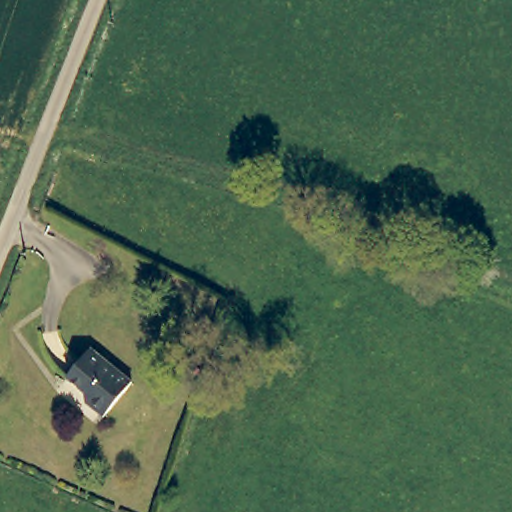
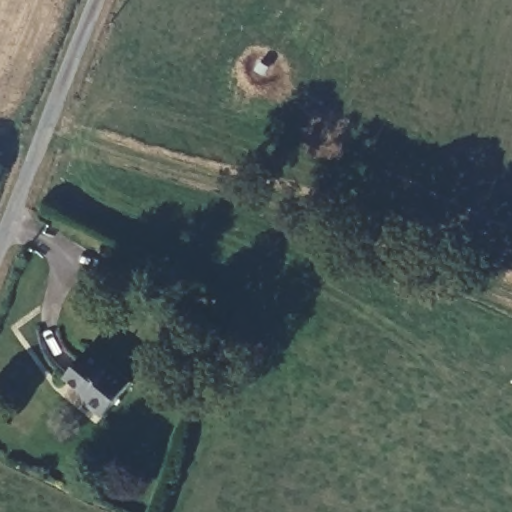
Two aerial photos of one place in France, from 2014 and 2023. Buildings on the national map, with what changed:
unchanged [(74,375),(98,349),(137,385),(107,416),(92,404),(97,398),(74,375)]

